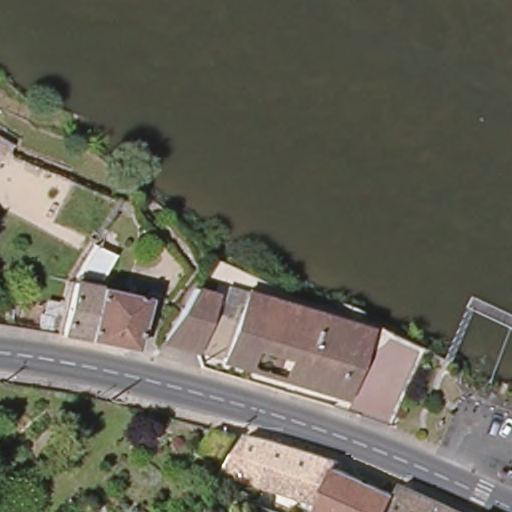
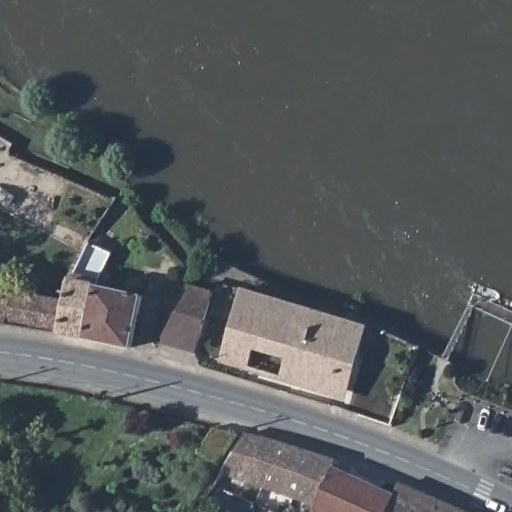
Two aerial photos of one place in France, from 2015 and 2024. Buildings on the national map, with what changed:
unchanged [(93,241),(114,252),(98,287),(84,339),(58,333),(72,287),(93,241)]
unchanged [(58,333),(4,325),(20,276),(72,287),(58,333)]
unchanged [(162,338),(189,279),(211,290),(214,291),(194,351),(185,347),(162,338)]
unchanged [(98,287),(105,289),(145,298),(133,349),(84,339),(98,287)]
unchanged [(244,289),(370,326),(349,401),(279,381),(286,362),(259,353),(251,373),(218,365),(244,289)]
unchanged [(211,458),(193,446),(206,425),(229,431),(211,458)]
unchanged [(388,507),(386,512),(311,512),(313,508),(234,473),(224,489),(214,484),(245,435),(338,462),(338,463),(335,470),(393,496),(388,507)]
unchanged [(388,507),(393,496),(399,484),(426,496),(462,512),(386,512),(388,507)]
unchanged [(246,500),(250,490),(274,501),(269,511),(246,500)]

